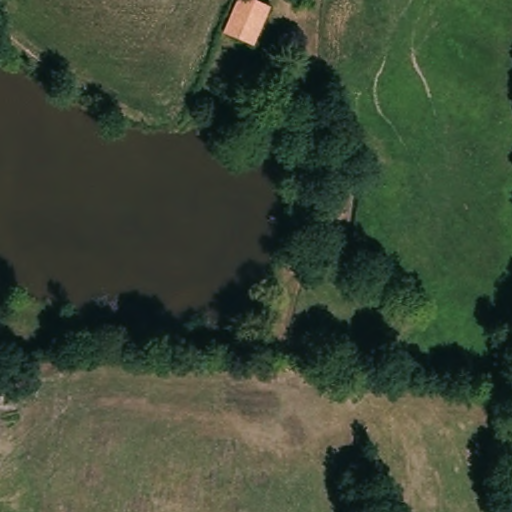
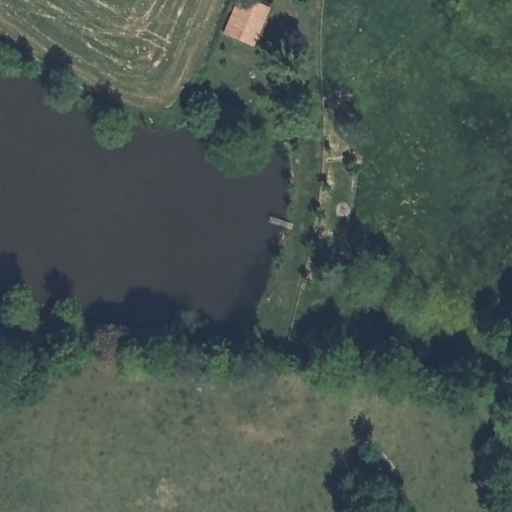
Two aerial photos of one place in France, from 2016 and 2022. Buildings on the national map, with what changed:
unchanged [(237,0),(256,0),(272,5),(257,44),(225,35),(237,0)]

